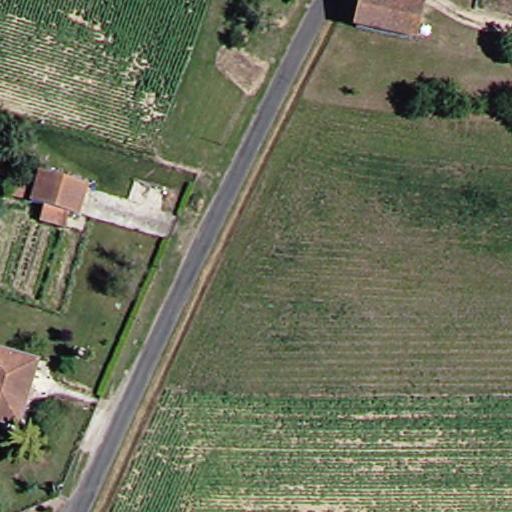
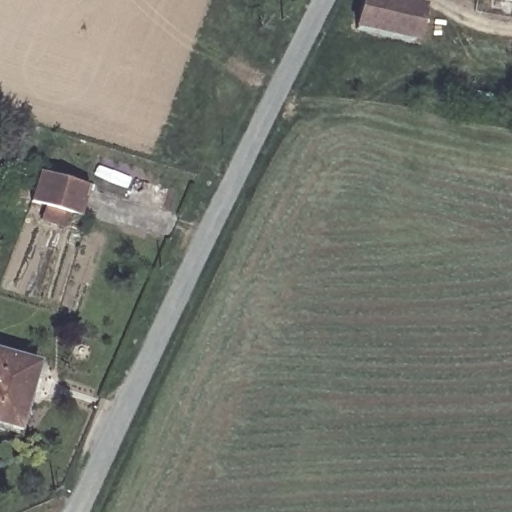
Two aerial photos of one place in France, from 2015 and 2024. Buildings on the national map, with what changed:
unchanged [(504,0),(512,0),(512,1),(504,0)]
unchanged [(367,2),(425,9),(422,43),(363,34),(367,2)]
unchanged [(84,187),(76,214),(27,198),(35,170),(84,187)]
unchanged [(24,408),(14,404),(9,428),(0,425),(0,352),(39,365),(24,408)]

